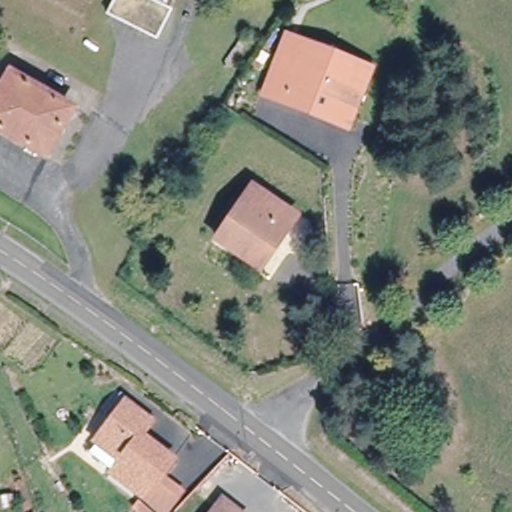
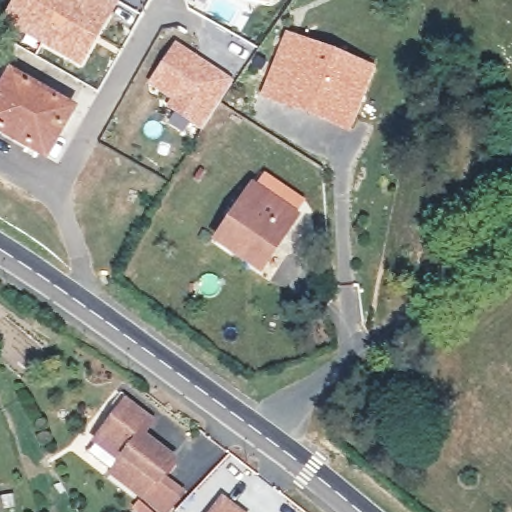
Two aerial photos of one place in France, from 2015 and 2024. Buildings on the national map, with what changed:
new [(82,67),(0,23),(0,20),(12,0),(120,0),(82,67)]
demolished [(169,8),(155,36),(105,10),(111,0),(153,0),(165,6),(169,8)]
new [(268,1),(263,0),(268,0),(268,1)]
unchanged [(22,45),(9,69),(0,85),(0,42),(5,34),(22,45)]
unchanged [(302,110),(265,93),(290,35),(367,69),(347,118),(343,128),(302,110)]
new [(237,79),(202,130),(165,106),(172,97),(148,83),(177,41),(237,79)]
unchanged [(45,151),(42,155),(0,130),(0,85),(9,69),(72,105),(45,151)]
unchanged [(260,268),(214,239),(250,187),(293,217),(260,268)]
unchanged [(160,508),(143,495),(107,468),(116,456),(93,440),(124,398),(142,411),(151,418),(144,427),(141,431),(173,456),(156,479),(172,492),(160,508)]
unchanged [(236,512),(208,512),(220,498),(236,512)]

